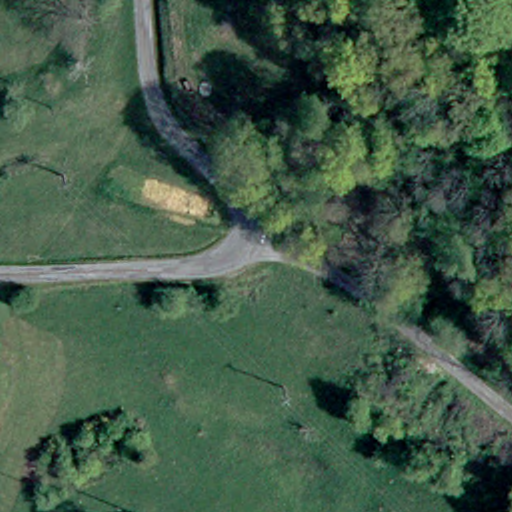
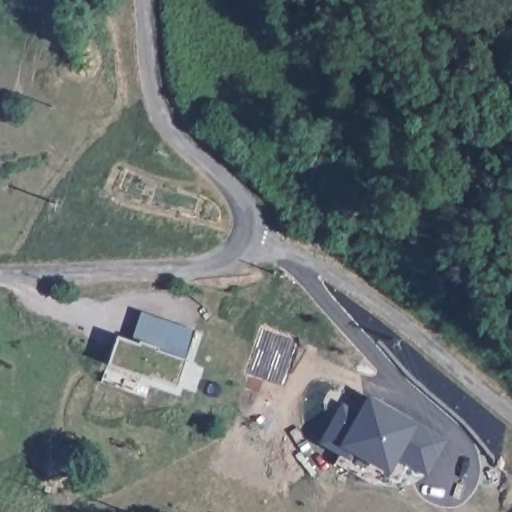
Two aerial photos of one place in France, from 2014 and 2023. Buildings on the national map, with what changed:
new [(194,328),(186,357),(177,384),(153,376),(152,378),(108,364),(117,336),(131,340),(141,310),(194,328)]
new [(360,410),(368,396),(418,424),(447,439),(427,476),(399,456),(390,474),(353,452),(349,459),(320,442),(340,405),(360,410)]

